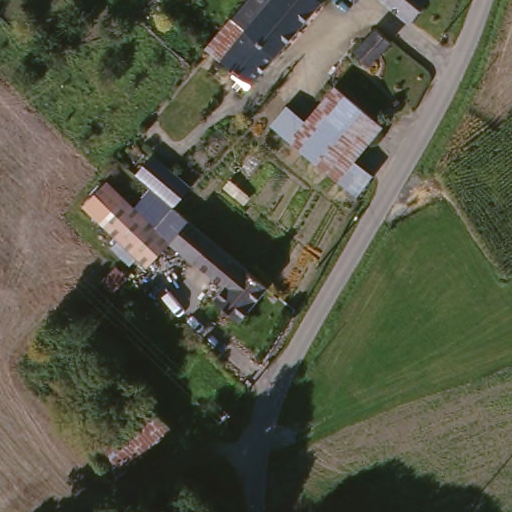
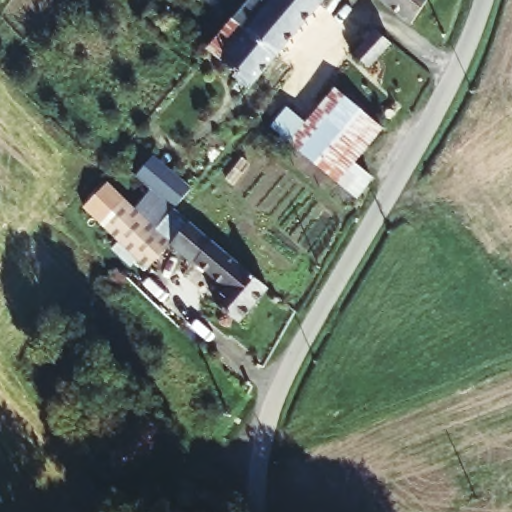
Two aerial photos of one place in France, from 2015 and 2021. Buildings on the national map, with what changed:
unchanged [(241,13),(251,0),(321,0),(279,50),(258,32),(256,30),(239,15),(241,13)]
unchanged [(411,15),(405,22),(405,23),(394,15),(377,0),(424,0),(411,15)]
unchanged [(219,40),(225,33),(239,15),(256,30),(258,32),(279,50),(253,82),(223,56),(213,48),(219,40)]
unchanged [(392,40),(366,67),(342,47),(370,20),(392,40)]
unchanged [(357,200),(337,184),(335,182),(294,149),(264,127),(281,110),(304,120),(338,86),(381,128),(376,134),(353,163),(372,179),(357,200)]
unchanged [(108,177),(157,225),(177,202),(134,170),(151,150),(196,186),(181,205),(273,286),(241,324),(216,300),(229,287),(200,256),(192,261),(173,242),(149,266),(84,203),(108,177)]
unchanged [(91,451),(133,411),(147,398),(174,425),(119,480),(91,451)]

